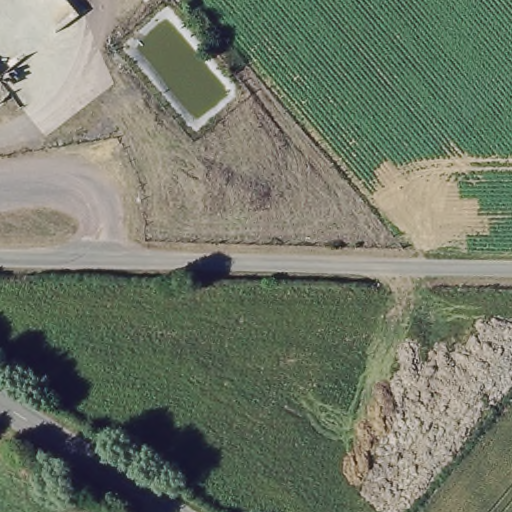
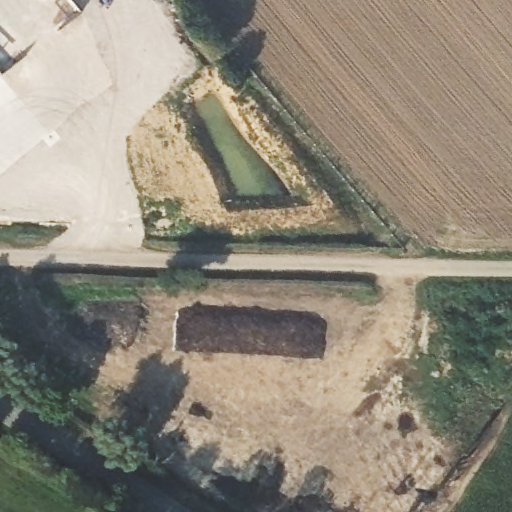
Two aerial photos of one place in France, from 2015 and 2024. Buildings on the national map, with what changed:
[]

